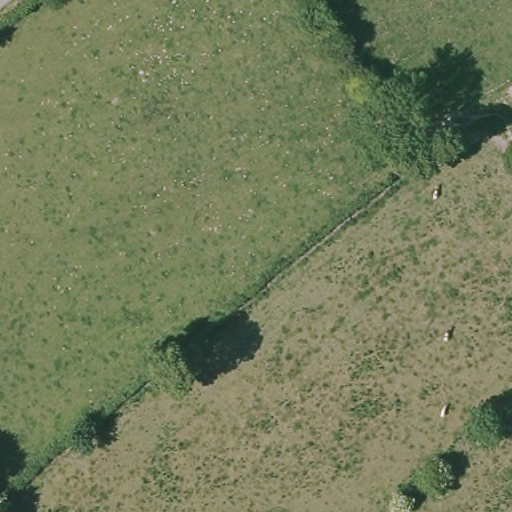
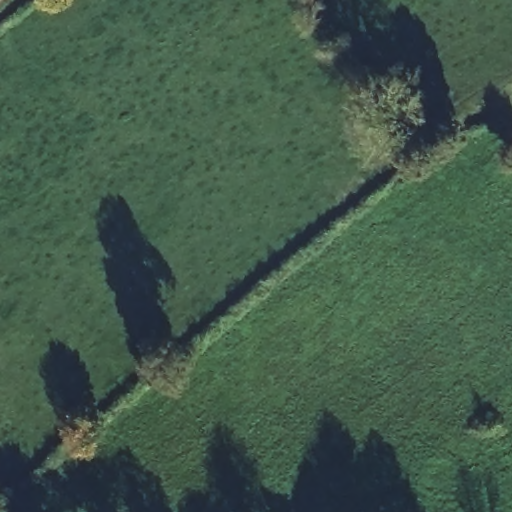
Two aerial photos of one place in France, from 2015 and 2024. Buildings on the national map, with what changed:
[]

